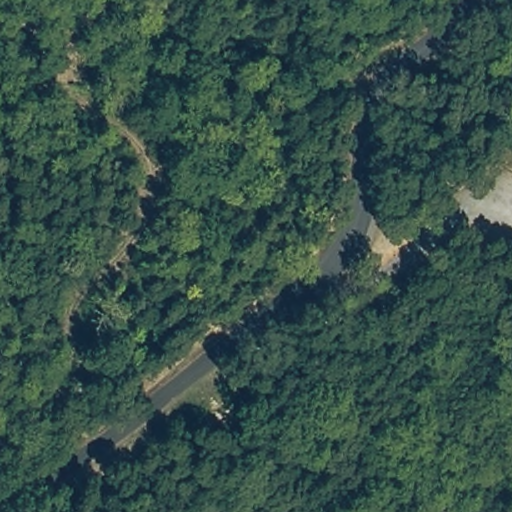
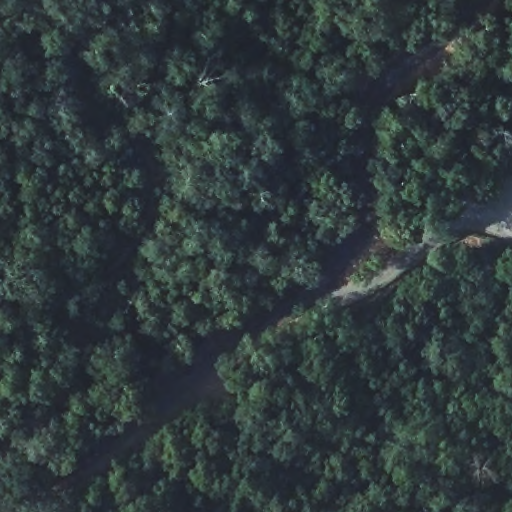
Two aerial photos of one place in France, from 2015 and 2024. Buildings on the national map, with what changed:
[]

